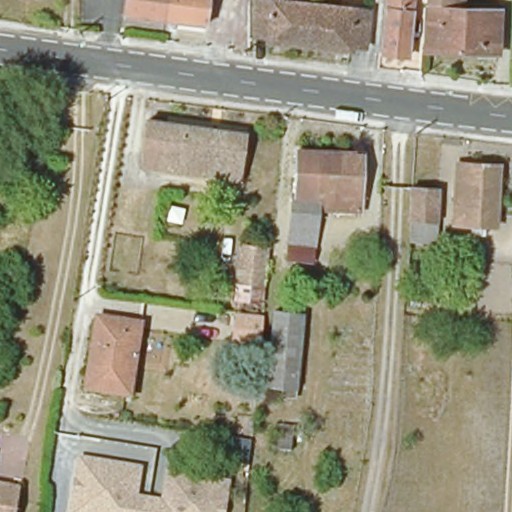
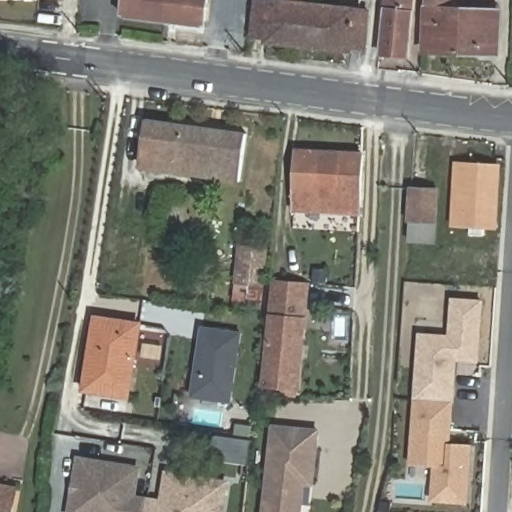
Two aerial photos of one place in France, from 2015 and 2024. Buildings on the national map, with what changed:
unchanged [(131,0),(170,0),(166,22),(129,17),(131,0)]
unchanged [(211,0),(208,28),(166,22),(170,0),(211,0)]
unchanged [(384,0),(410,0),(404,56),(378,54),(384,0)]
unchanged [(421,51),(425,0),(465,0),(465,11),(496,12),(494,56),(421,51)]
unchanged [(366,52),(350,51),(349,55),(266,46),(267,42),(253,41),(257,5),(369,15),(366,52)]
unchanged [(240,178),(143,166),(148,119),(246,133),(240,178)]
unchanged [(359,215),(317,212),(294,201),(297,201),(298,154),(364,159),(359,215)]
unchanged [(499,167),(496,229),(454,226),(459,164),(499,167)]
unchanged [(435,191),(432,244),(407,242),(411,189),(435,191)]
unchanged [(270,248),(268,292),(260,292),(259,307),(237,307),(240,243),(270,248)]
new [(275,313),(277,281),(309,283),(304,316),(275,313)]
new [(468,505),(431,502),(433,466),(409,464),(418,333),(449,335),(451,297),(484,301),(479,363),(458,361),(452,443),(473,445),(468,505)]
unchanged [(297,387),(268,384),(275,313),(304,316),(297,387)]
unchanged [(129,394),(86,389),(94,327),(94,326),(95,317),(107,318),(139,322),(129,394)]
new [(234,403),(192,397),(203,327),(244,332),(234,403)]
new [(306,485),(304,512),(264,512),(273,425),(322,429),(315,486),(306,485)]
new [(215,433),(249,438),(246,463),(212,458),(215,433)]
unchanged [(76,478),(79,460),(89,461),(129,467),(138,468),(134,497),(149,500),(164,502),(168,472),(190,476),(227,481),(224,499),(222,512),(72,512),(76,478)]
unchanged [(17,512),(0,512),(0,487),(20,491),(17,512)]

